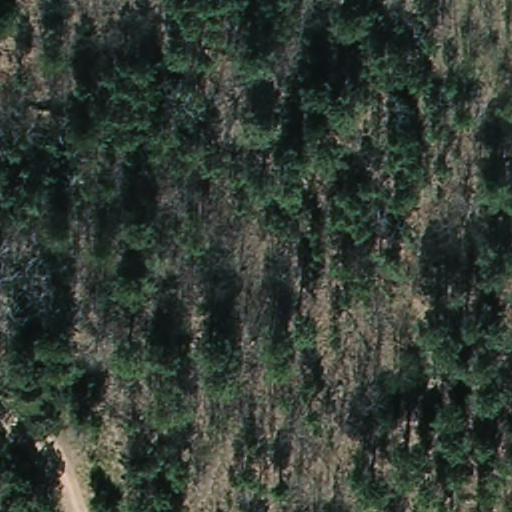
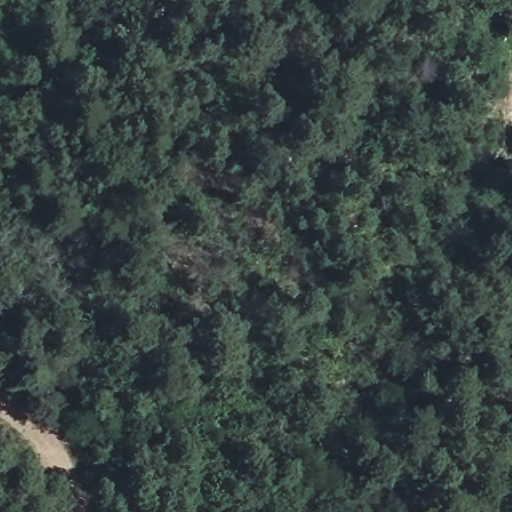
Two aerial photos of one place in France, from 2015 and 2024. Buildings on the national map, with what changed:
[]

